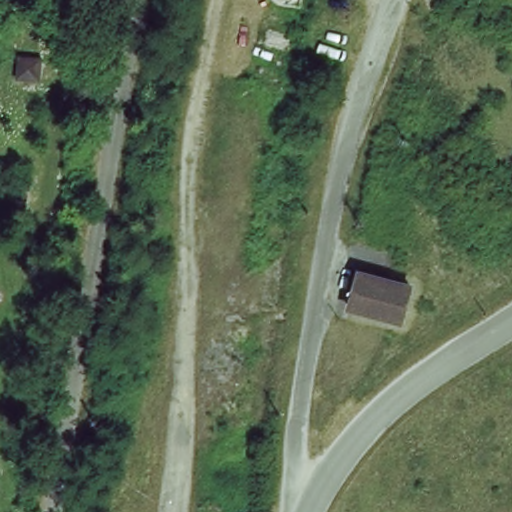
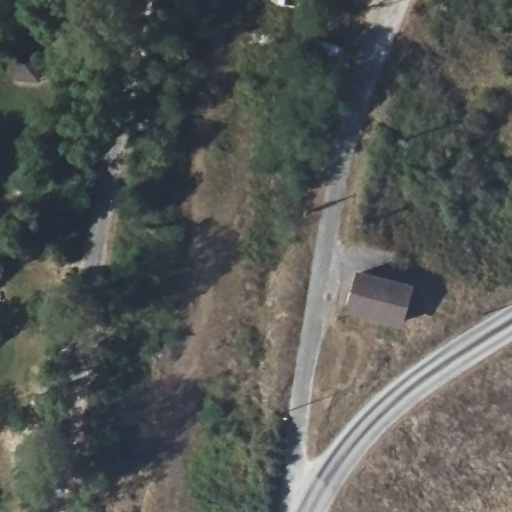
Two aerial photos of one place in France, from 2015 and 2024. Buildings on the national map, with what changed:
unchanged [(327,28),(346,34),(338,59),(319,52),(319,48),(327,28)]
unchanged [(19,84),(20,58),(47,58),(44,86),(19,84)]
unchanged [(415,288),(405,323),(352,308),(361,273),(415,288)]

